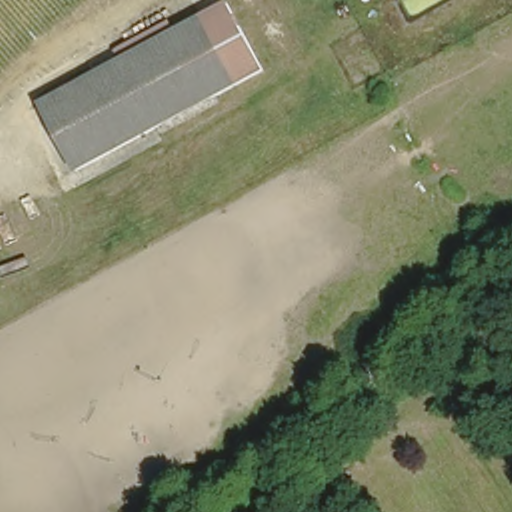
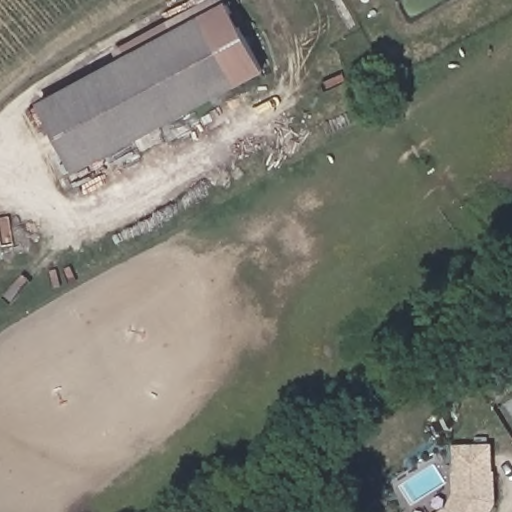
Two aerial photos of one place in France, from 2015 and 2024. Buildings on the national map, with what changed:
unchanged [(113,50),(132,39),(166,20),(170,29),(199,14),(223,0),(259,66),(190,105),(76,167),(39,101),(117,58),(113,50)]
new [(446,509),(453,496),(451,475),(453,475),(451,450),(477,446),(486,472),(489,472),(491,503),(487,512),(442,512),(446,509)]

